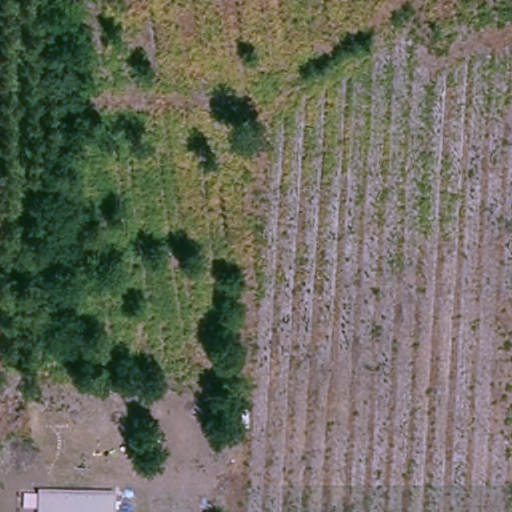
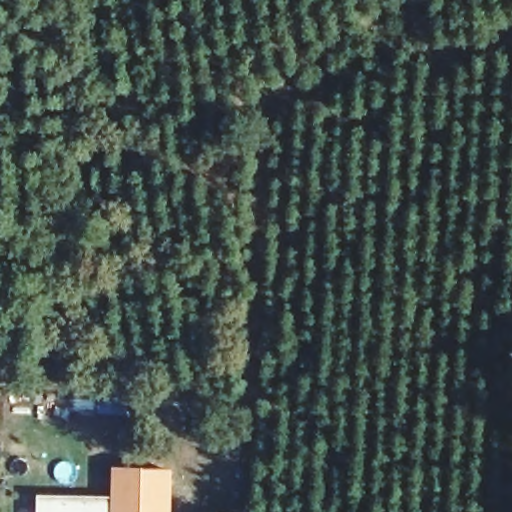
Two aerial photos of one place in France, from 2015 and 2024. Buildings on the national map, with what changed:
new [(173,467),(172,512),(117,512),(117,498),(111,498),(112,467),(173,467)]
unchanged [(117,512),(38,512),(39,497),(117,498),(117,512)]

